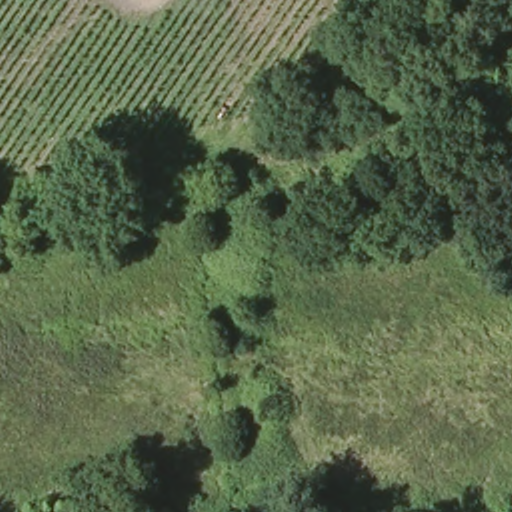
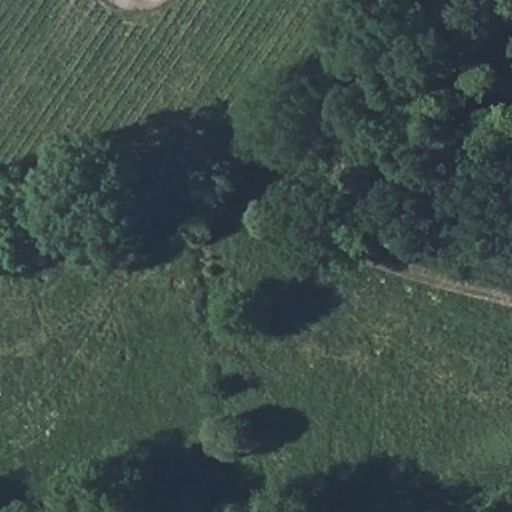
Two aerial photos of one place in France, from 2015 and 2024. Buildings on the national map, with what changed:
[]

